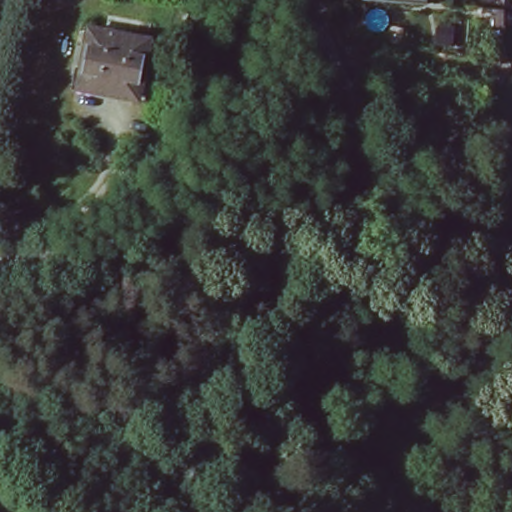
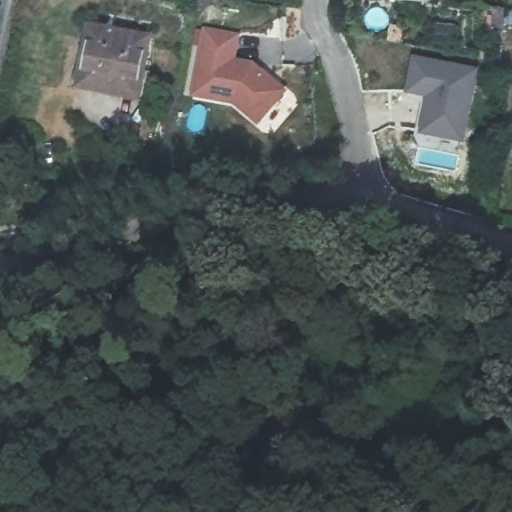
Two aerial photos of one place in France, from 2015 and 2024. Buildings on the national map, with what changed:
unchanged [(407,0),(418,0),(417,1),(407,0)]
new [(280,78),(254,108),(229,86),(191,78),(205,14),(237,21),(231,46),(250,50),(249,54),(255,60),(257,56),(280,78)]
unchanged [(78,85),(87,29),(152,41),(142,96),(78,85)]
new [(484,67),(470,140),(425,131),(432,94),(408,90),(415,56),(484,67)]

